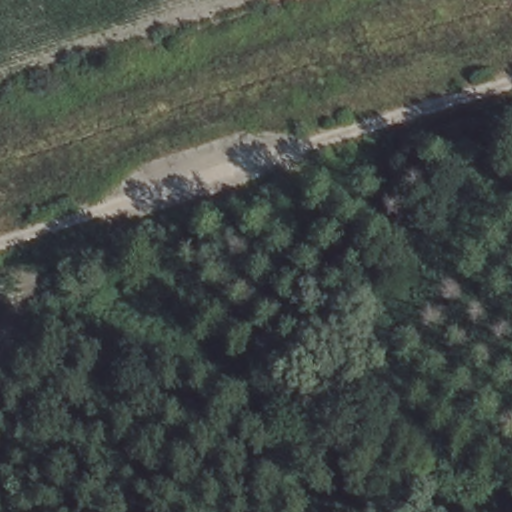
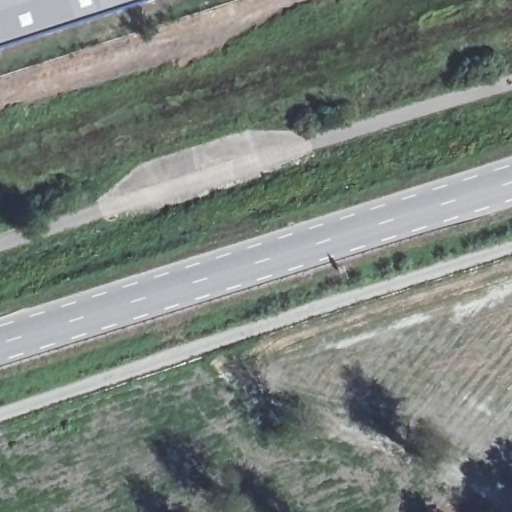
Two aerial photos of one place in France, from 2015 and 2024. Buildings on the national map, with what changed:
new [(0,41),(0,0),(128,0),(0,41)]

